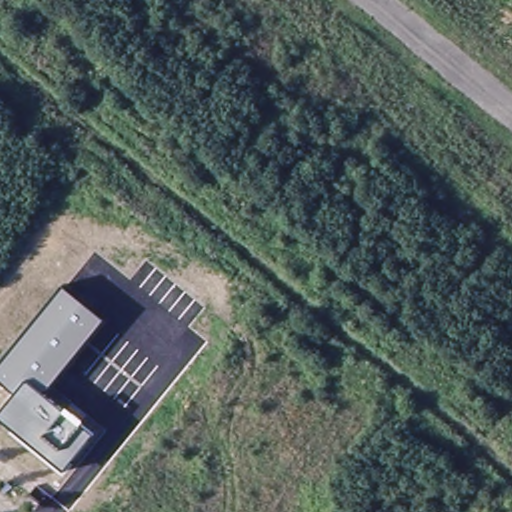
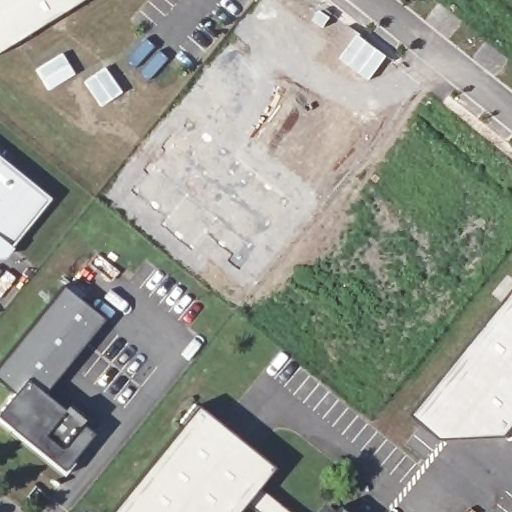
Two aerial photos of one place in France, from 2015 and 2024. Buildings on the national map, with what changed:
new [(0,53),(0,0),(85,0),(0,53)]
new [(13,252),(0,256),(0,162),(51,204),(13,252)]
unchanged [(103,319),(42,394),(63,411),(66,407),(83,420),(80,425),(92,434),(62,472),(0,420),(0,411),(14,394),(0,382),(0,362),(62,285),(103,319)]
new [(512,296),(512,437),(509,441),(471,410),(444,444),(413,418),(512,296)]
new [(238,512),(112,512),(198,408),(273,470),(258,488),(287,512),(256,512),(245,503),(238,512)]
new [(471,410),(509,441),(444,444),(471,410)]
new [(333,512),(317,512),(323,505),(333,512)]
new [(346,512),(341,512),(343,510),(346,512)]

